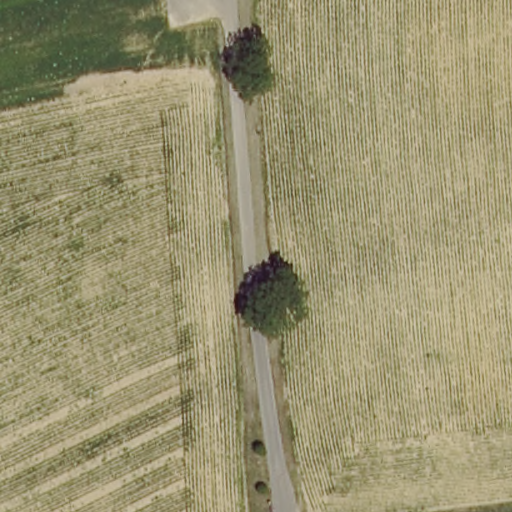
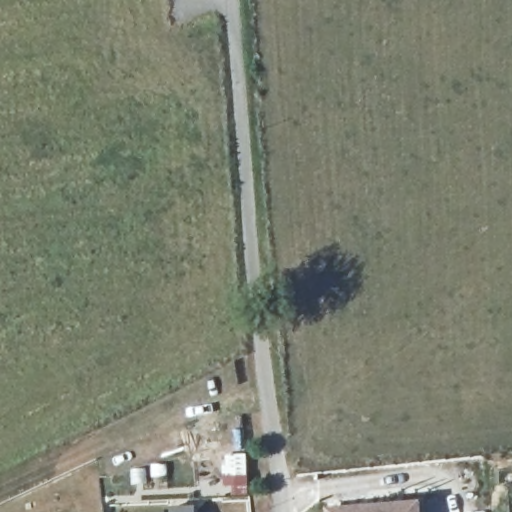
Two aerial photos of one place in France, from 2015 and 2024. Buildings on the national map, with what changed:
new [(421,512),(324,512),(324,509),(420,502),(421,512)]
new [(196,506),(196,512),(169,512),(169,506),(196,506)]

